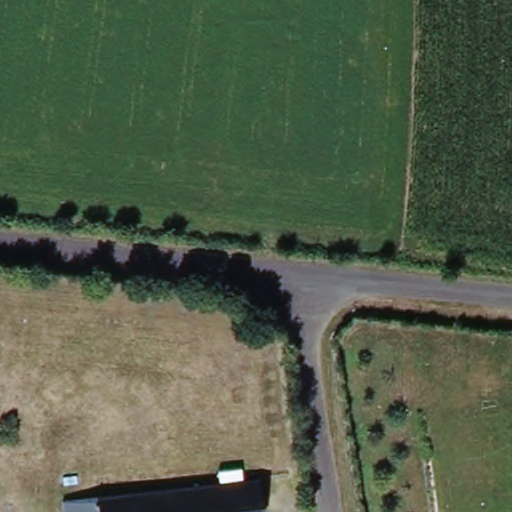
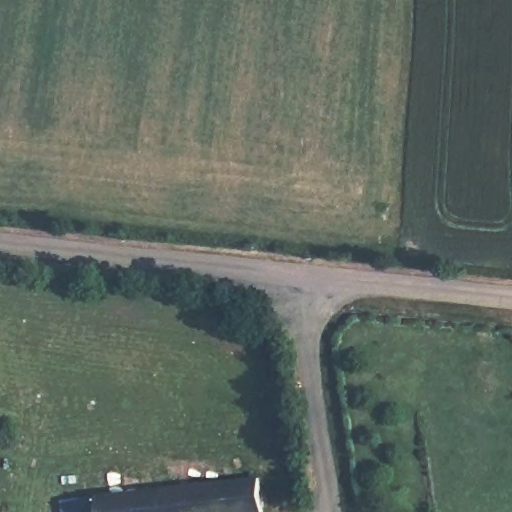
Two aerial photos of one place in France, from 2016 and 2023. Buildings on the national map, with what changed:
unchanged [(268,512),(69,512),(67,496),(264,474),(268,512)]

